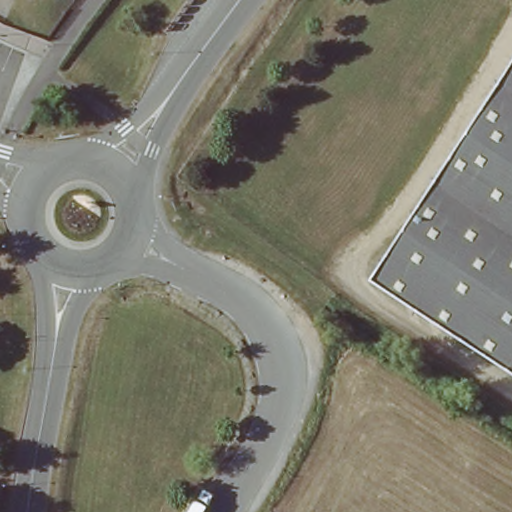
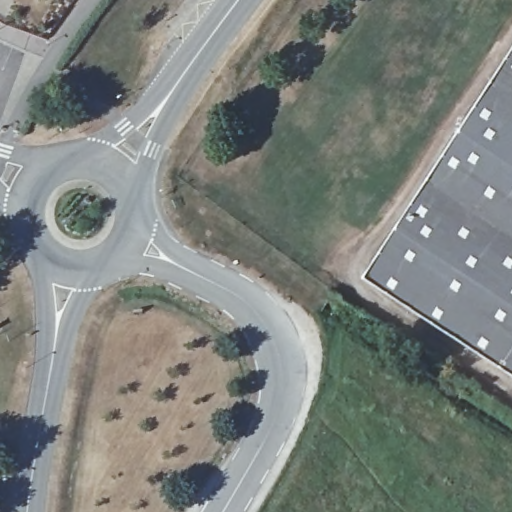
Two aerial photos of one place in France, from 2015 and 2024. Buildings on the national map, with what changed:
unchanged [(512,74),(512,376),(374,287),(512,74)]

